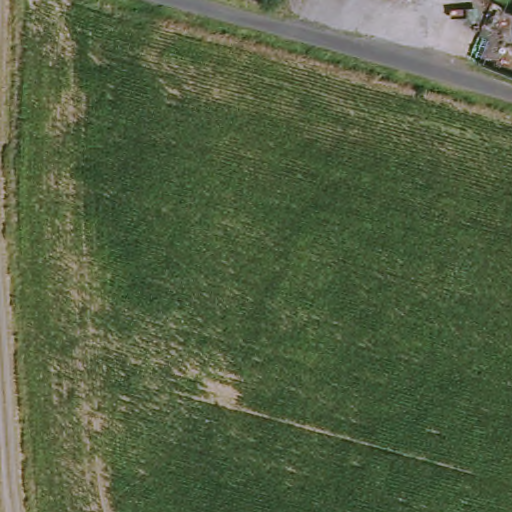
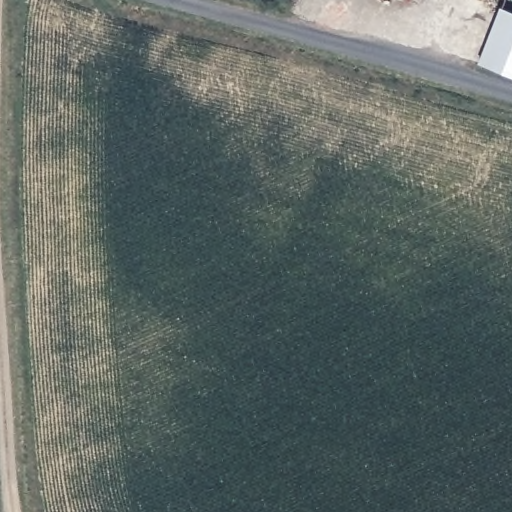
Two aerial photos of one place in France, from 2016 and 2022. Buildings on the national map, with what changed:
new [(503,7),(512,11),(512,76),(481,63),(503,7)]

